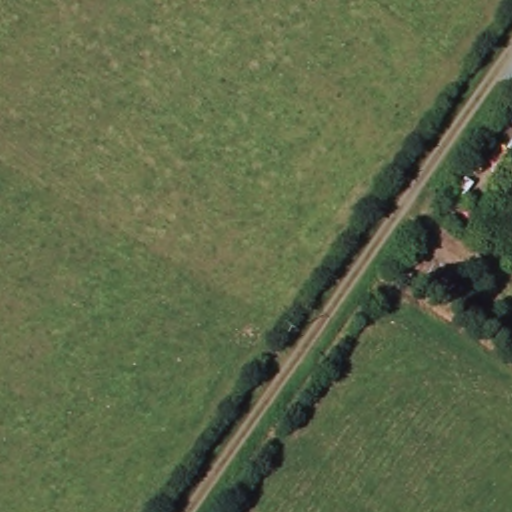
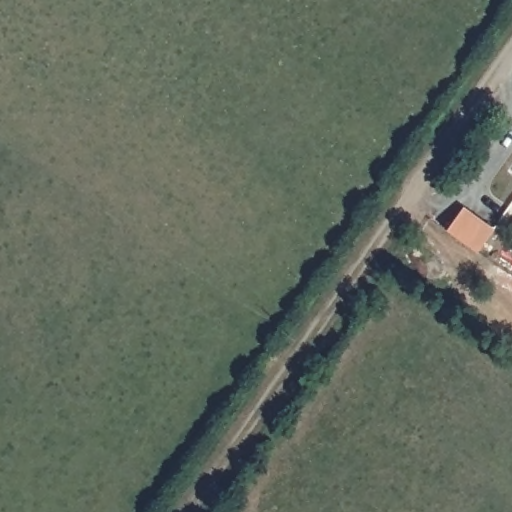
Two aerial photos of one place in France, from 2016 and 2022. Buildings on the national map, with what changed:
new [(447,229),(464,207),(494,230),(477,250),(447,229)]

